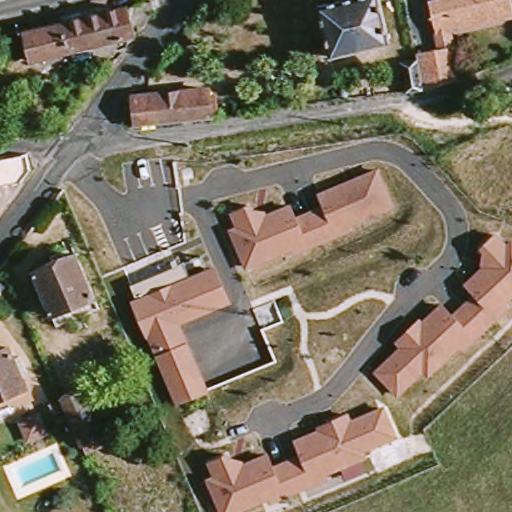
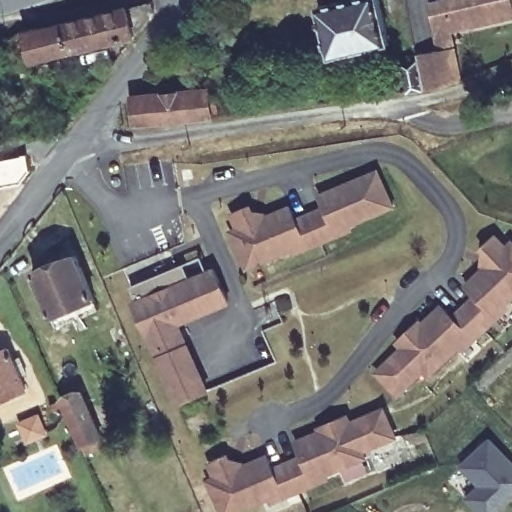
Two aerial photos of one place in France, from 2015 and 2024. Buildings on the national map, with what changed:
unchanged [(321,11),(371,0),(380,0),(391,46),(332,60),(321,11)]
unchanged [(439,37),(433,7),(450,3),(449,0),(512,0),(512,22),(439,37)]
unchanged [(151,7),(154,18),(138,38),(30,64),(29,56),(24,36),(151,7)]
unchanged [(420,63),(419,58),(441,54),(457,52),(459,67),(462,85),(426,95),(408,98),(403,67),(420,63)]
unchanged [(139,131),(137,102),(211,95),(215,123),(139,131)]
unchanged [(25,153),(29,171),(19,184),(0,187),(0,159),(25,153)]
unchanged [(397,206),(353,224),(355,231),(296,256),(293,251),(246,271),(231,229),(238,226),(231,210),(253,201),(257,210),(269,212),(291,203),(296,217),(325,205),(320,192),(379,167),(397,206)]
unchanged [(512,307),(464,353),(459,350),(429,379),(422,374),(399,398),(373,372),(400,346),(397,342),(421,318),(424,320),(442,304),(453,315),(475,292),(467,282),(481,267),(482,243),(496,231),(507,243),(512,239),(512,298),(507,303),(512,307)]
unchanged [(73,253),(96,309),(53,326),(30,271),(73,253)]
unchanged [(231,302),(182,322),(210,391),(173,407),(130,300),(138,297),(134,284),(202,257),(207,269),(217,265),(231,302)]
unchanged [(13,349),(31,390),(0,405),(0,355),(13,349)]
unchanged [(66,399),(83,392),(105,442),(87,450),(66,399)]
unchanged [(56,411),(53,405),(61,401),(63,407),(56,411)]
unchanged [(230,451),(232,457),(246,461),(269,451),(275,466),(303,454),(297,438),(319,430),(316,424),(348,411),(352,419),(385,406),(399,439),(364,455),(366,459),(329,475),(331,481),(268,506),(265,503),(242,512),(219,512),(206,478),(213,476),(208,460),(230,451)]
unchanged [(49,416),(57,433),(39,441),(32,424),(49,416)]
new [(512,465),(512,494),(492,512),(476,512),(462,496),(476,484),(458,464),(486,437),(512,465)]

